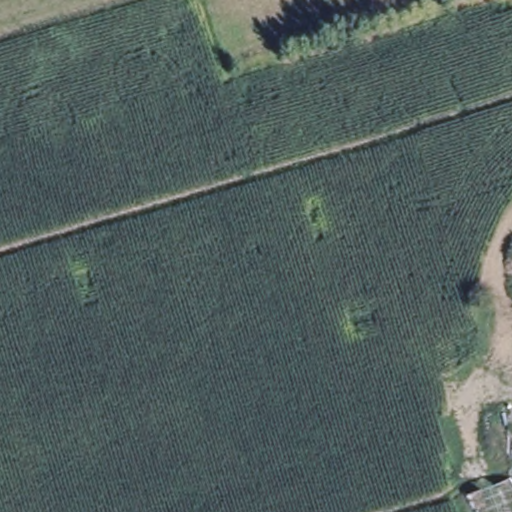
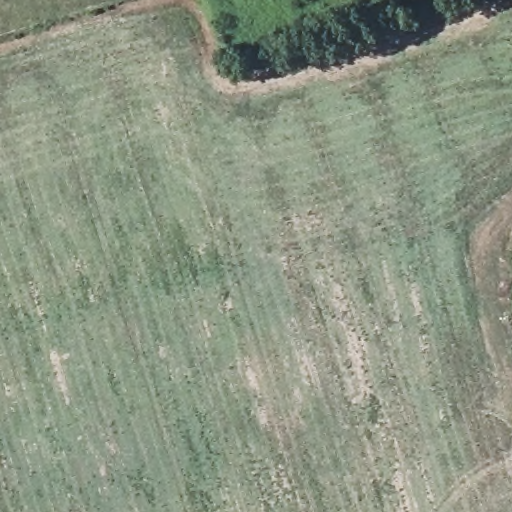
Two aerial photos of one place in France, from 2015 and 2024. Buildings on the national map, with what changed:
demolished [(472,512),(466,496),(512,478),(512,512),(472,512)]

